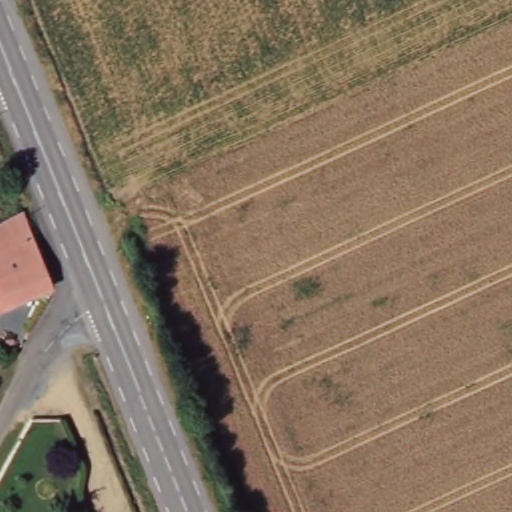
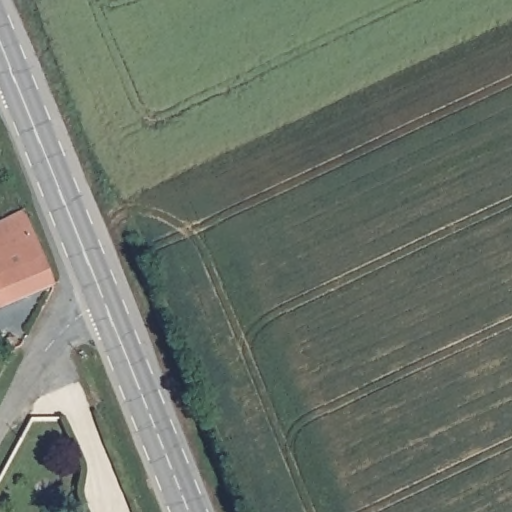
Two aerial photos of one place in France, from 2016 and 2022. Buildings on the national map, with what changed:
unchanged [(0,221),(22,210),(52,285),(0,307),(0,221)]

